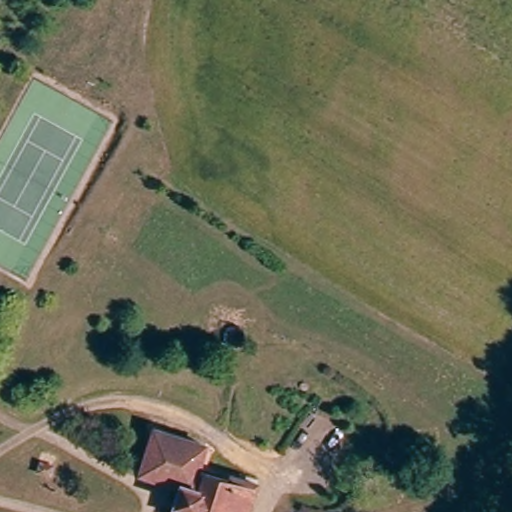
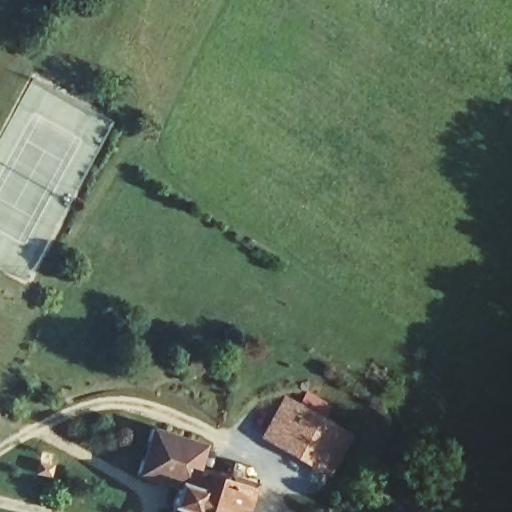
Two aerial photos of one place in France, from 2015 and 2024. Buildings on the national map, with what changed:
new [(355,435),(331,476),(260,439),(286,395),(355,435)]
unchanged [(173,512),(180,486),(146,472),(152,437),(154,428),(207,447),(202,468),(257,488),(251,512),(173,512)]

